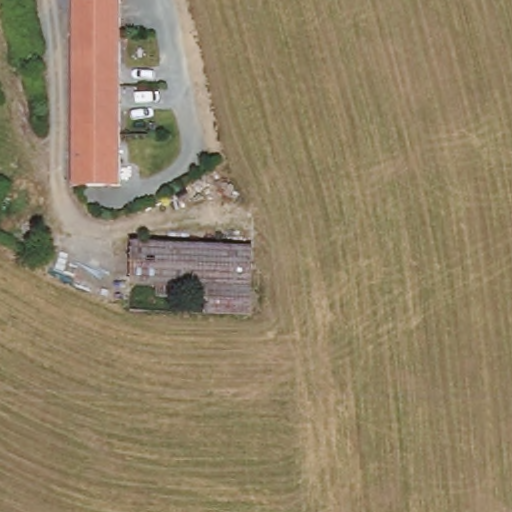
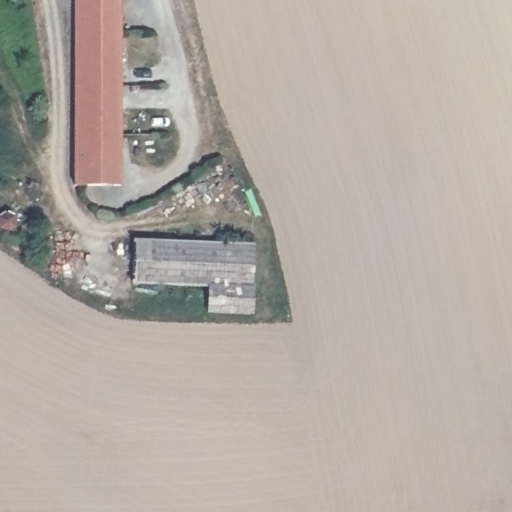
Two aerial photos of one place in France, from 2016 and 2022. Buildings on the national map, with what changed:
unchanged [(120,110),(120,184),(120,189),(72,190),(70,0),(119,0),(119,59),(120,110)]
unchanged [(224,243),(251,244),(252,286),(174,285),(173,296),(160,296),(160,283),(133,283),(133,242),(224,243)]

